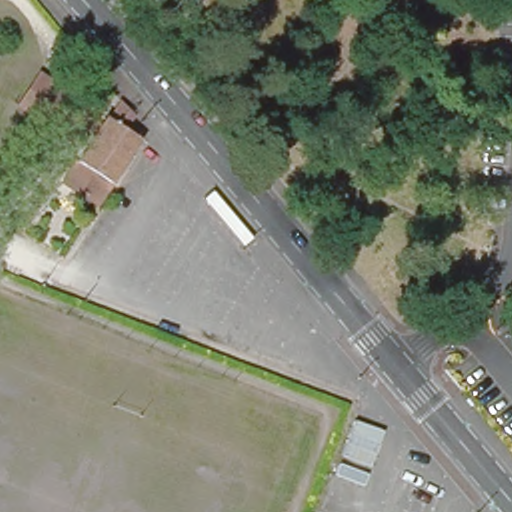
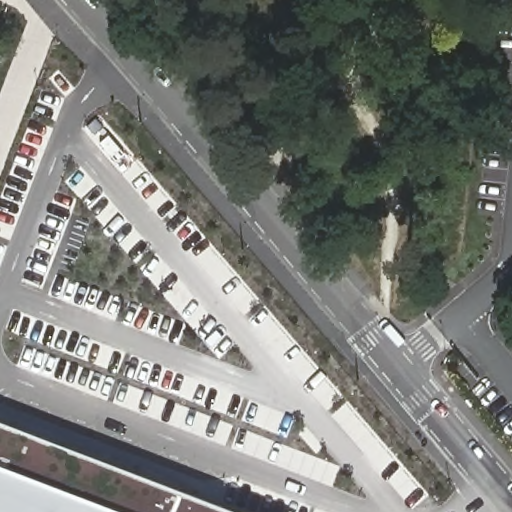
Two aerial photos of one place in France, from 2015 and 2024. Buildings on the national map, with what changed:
demolished [(106,169),(80,141),(120,103),(147,131),(106,169)]
new [(176,489),(234,512),(0,512),(0,412),(180,481),(176,489)]

